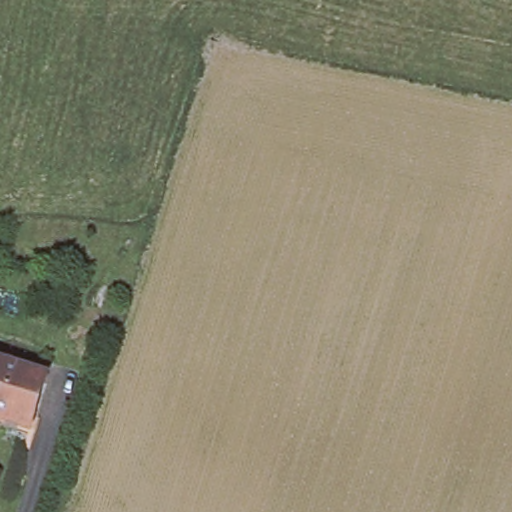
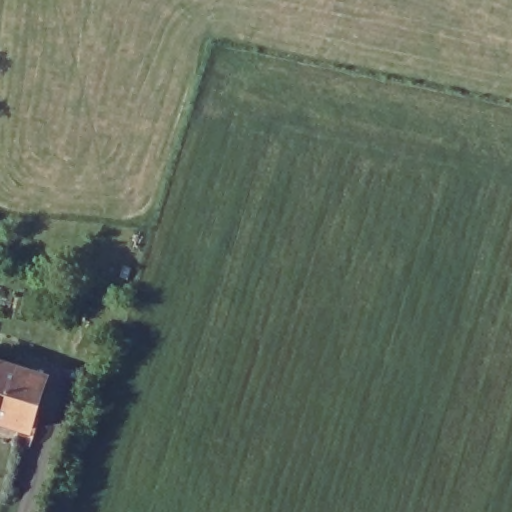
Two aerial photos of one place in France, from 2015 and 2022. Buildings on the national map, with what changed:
unchanged [(37,382),(20,433),(0,427),(0,370),(37,382)]

